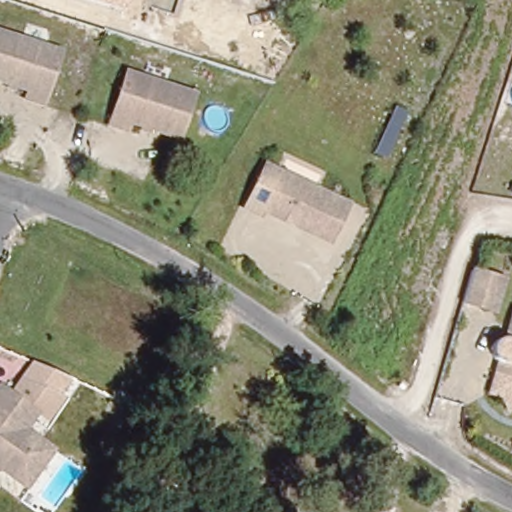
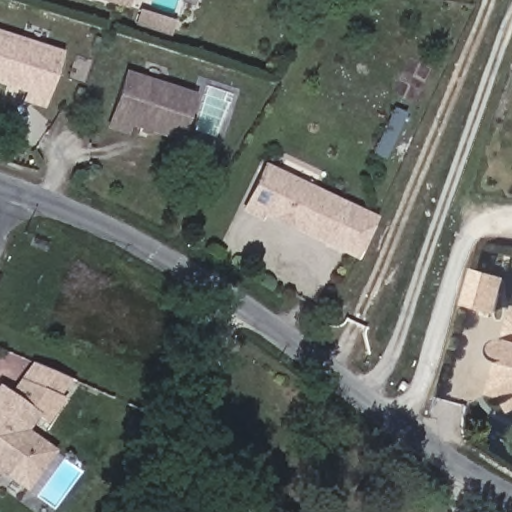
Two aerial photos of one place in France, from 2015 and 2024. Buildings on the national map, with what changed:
unchanged [(125,7),(103,0),(127,0),(125,7)]
unchanged [(44,105),(26,100),(29,90),(0,82),(0,35),(59,52),(44,105)]
unchanged [(126,76),(194,95),(181,138),(131,124),(128,133),(111,128),(126,76)]
unchanged [(268,206),(265,211),(250,201),(277,162),(342,206),(351,212),(328,246),(323,243),(268,206)]
unchanged [(495,315),(462,306),(472,269),(506,279),(495,315)]
unchanged [(511,323),(512,319),(512,323),(511,323)]
unchanged [(493,390),(483,385),(488,375),(497,357),(493,355),(492,354),(492,353),(491,352),(490,351),(490,350),(489,349),(488,347),(488,346),(488,345),(489,343),(489,342),(490,341),(490,340),(491,339),(492,338),(492,337),(493,336),(495,335),(496,335),(497,334),(498,334),(499,333),(501,333),(502,333),(503,333),(504,334),(506,334),(511,336),(512,333),(512,398),(493,390)]
unchanged [(10,393),(32,362),(70,379),(61,394),(67,399),(49,424),(36,413),(10,393)]
unchanged [(13,479),(0,469),(0,386),(10,393),(36,413),(24,430),(52,450),(25,487),(13,479)]

